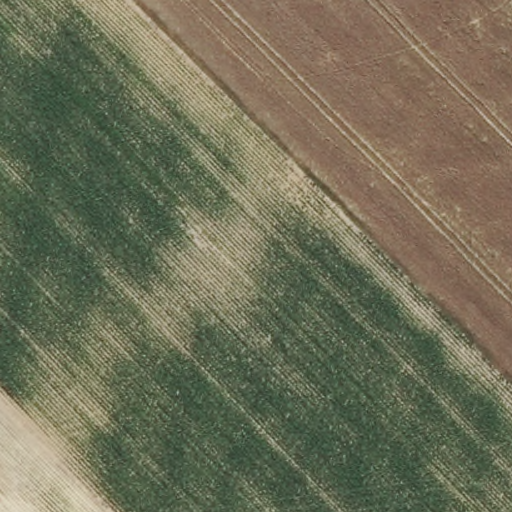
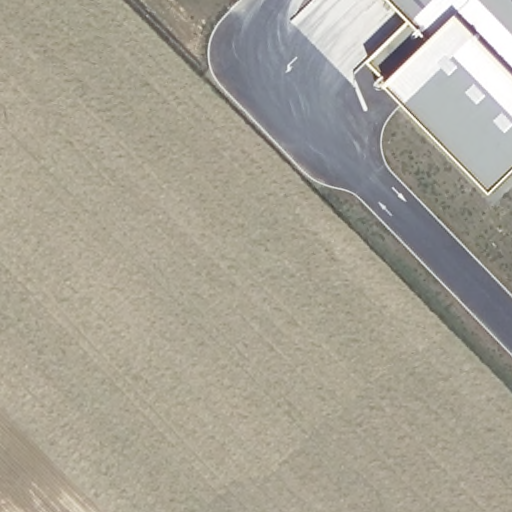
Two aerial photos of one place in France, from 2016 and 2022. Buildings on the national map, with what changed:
new [(512,168),(492,187),(367,59),(411,16),(395,0),(512,0),(512,168)]

